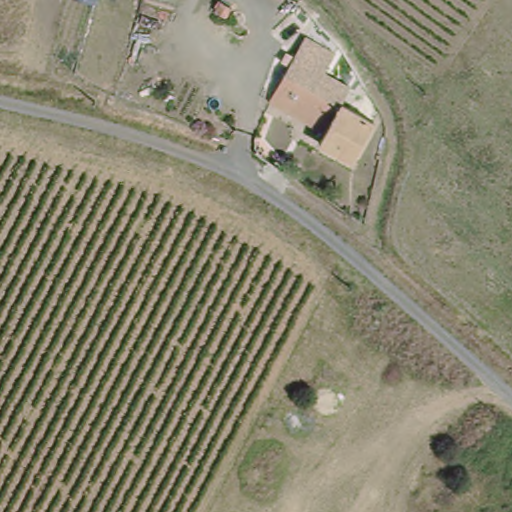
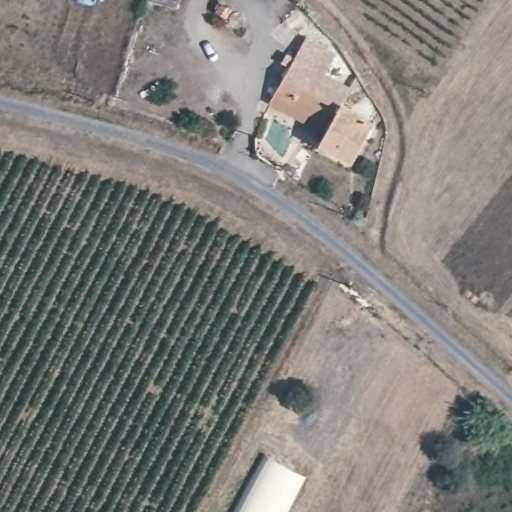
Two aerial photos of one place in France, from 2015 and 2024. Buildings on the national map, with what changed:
unchanged [(177,0),(182,0),(181,2),(177,0)]
unchanged [(349,162),(315,143),(321,134),(279,102),(312,51),(347,75),(339,90),(372,114),(372,122),(349,162)]
new [(306,473),(285,512),(238,512),(269,457),(306,473)]

